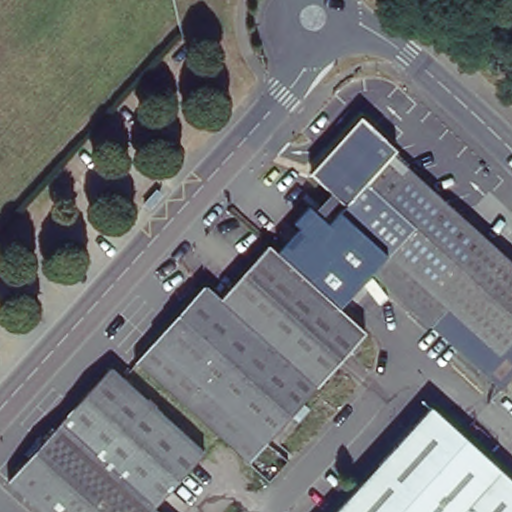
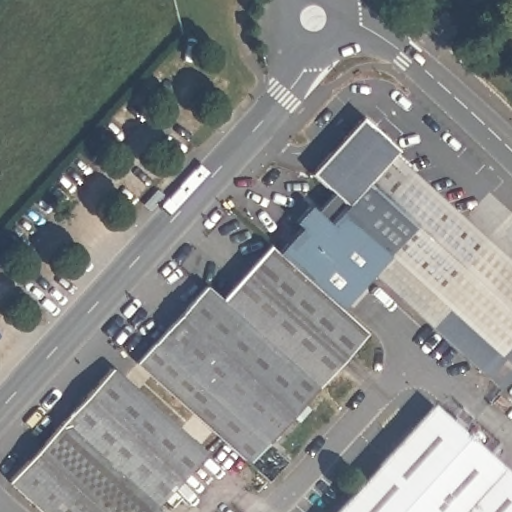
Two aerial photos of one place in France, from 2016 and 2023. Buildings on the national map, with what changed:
unchanged [(444,9),(452,16),(447,21),(447,20),(439,29),(432,23),(444,9)]
unchanged [(339,303),(277,247),(299,222),(293,217),(308,199),(322,213),(339,195),(309,169),(361,111),(398,145),(394,149),(512,257),(512,375),(504,385),(373,266),(339,303)]
unchanged [(319,381),(220,293),(268,239),(277,247),(339,303),(366,327),(319,381)]
unchanged [(249,458),(135,357),(205,279),(220,293),(319,381),(249,458)]
unchanged [(8,481),(60,423),(111,367),(205,452),(155,507),(160,512),(42,512),(8,481)]
unchanged [(431,406),(461,433),(512,480),(512,512),(335,512),(431,406)]

